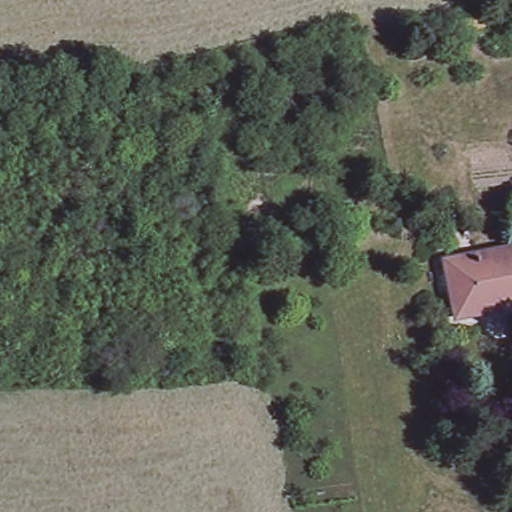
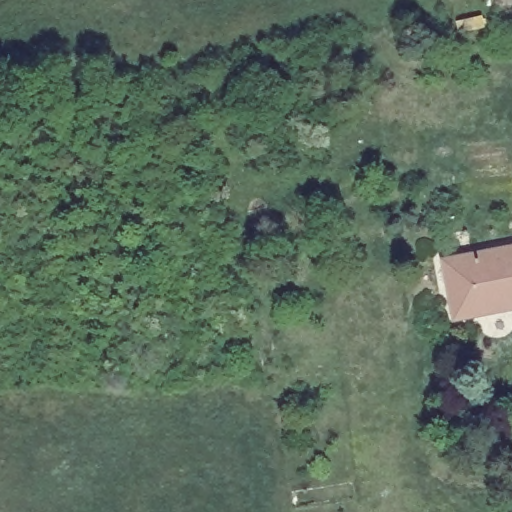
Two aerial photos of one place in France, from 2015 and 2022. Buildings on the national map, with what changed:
unchanged [(456,21),(485,13),(488,25),(472,30),(459,34),(456,21)]
unchanged [(447,266),(512,254),(512,310),(458,321),(447,266)]

